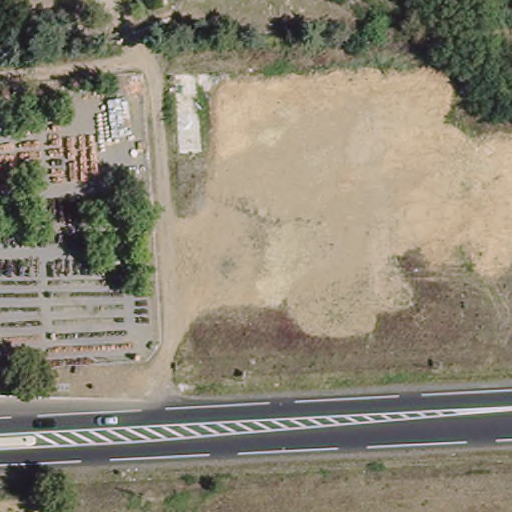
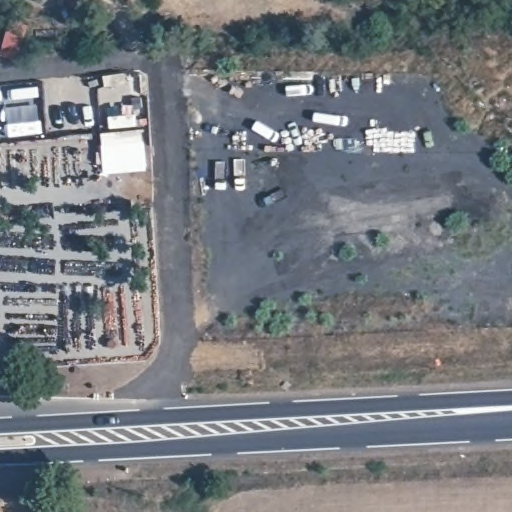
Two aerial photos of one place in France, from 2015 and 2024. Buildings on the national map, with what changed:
unchanged [(23,27),(11,50),(0,51),(0,46),(12,22),(23,27)]
new [(147,170),(105,174),(101,132),(143,129),(147,170)]

